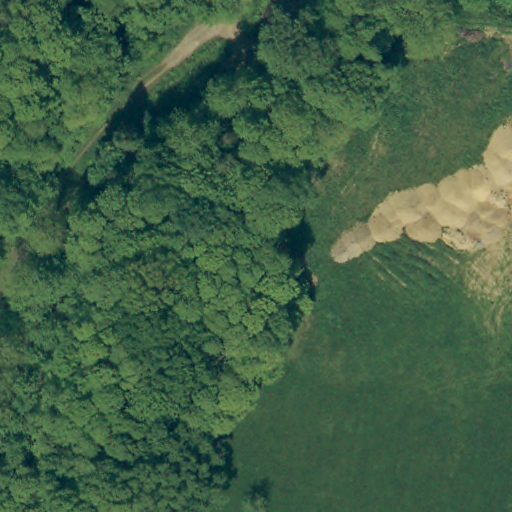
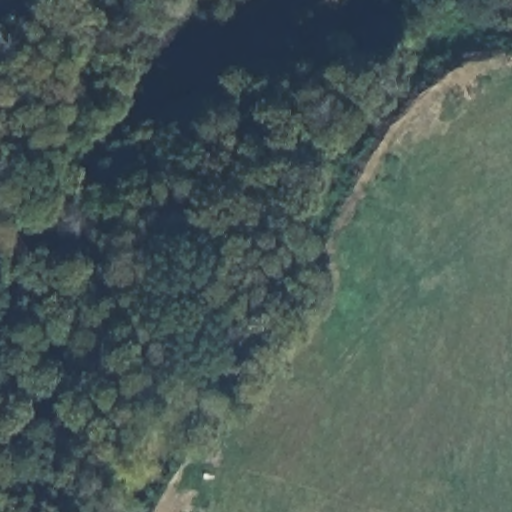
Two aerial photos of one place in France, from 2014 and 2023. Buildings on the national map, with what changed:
[]

